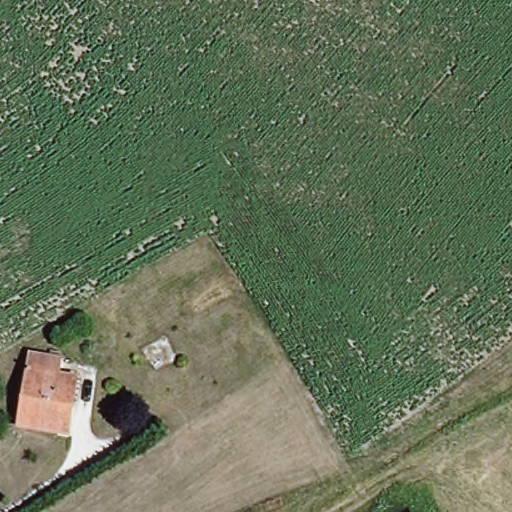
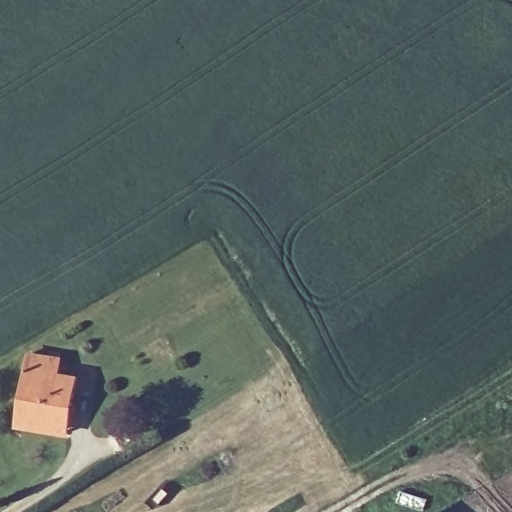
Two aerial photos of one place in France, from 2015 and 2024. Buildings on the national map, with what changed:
unchanged [(69,410),(58,410),(52,425),(14,417),(31,346),(82,356),(69,410)]

